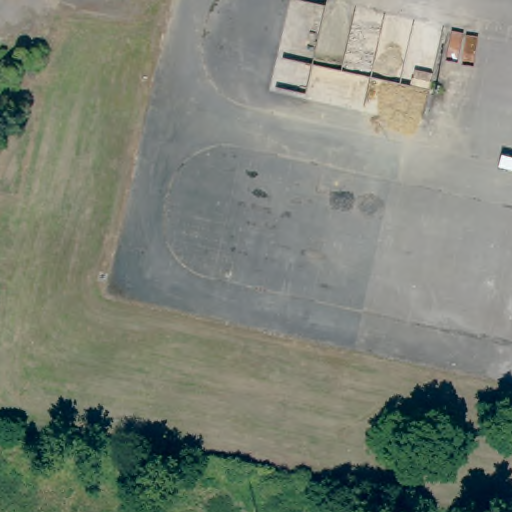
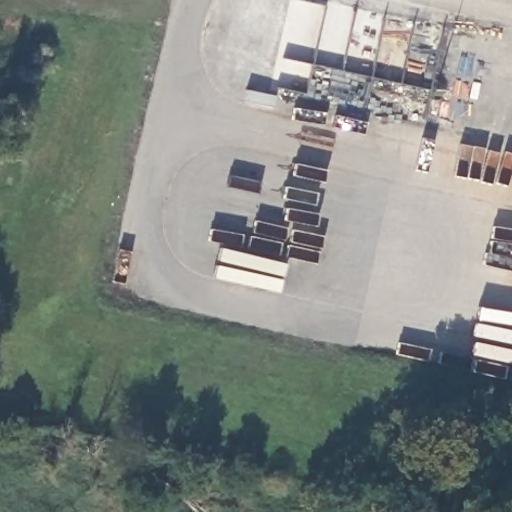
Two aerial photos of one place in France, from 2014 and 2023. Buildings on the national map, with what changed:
unchanged [(0,158),(0,148),(2,148),(0,158)]

